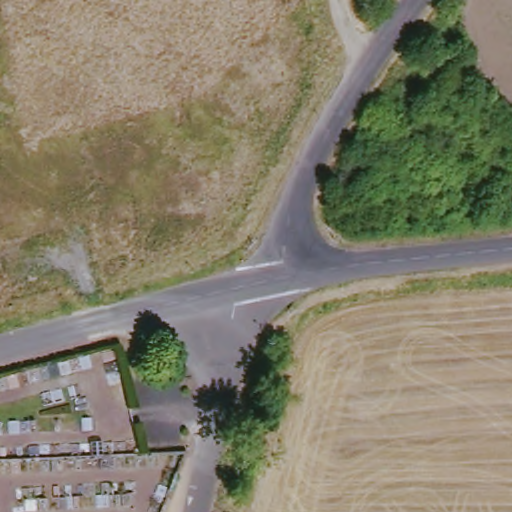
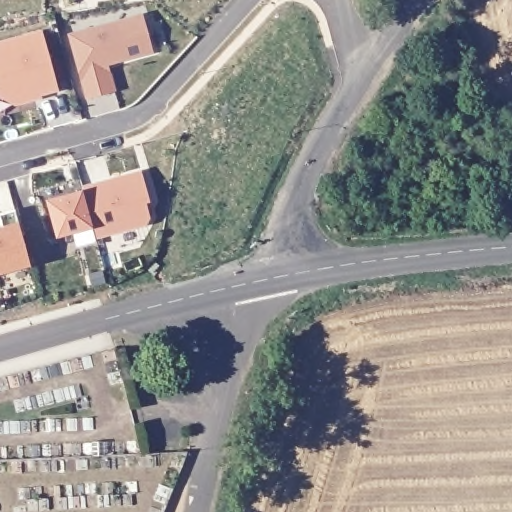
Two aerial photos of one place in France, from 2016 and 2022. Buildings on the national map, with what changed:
new [(108,64),(115,91),(85,100),(66,36),(143,14),(152,54),(108,64)]
new [(0,96),(0,42),(42,30),(57,91),(12,104),(0,96)]
new [(45,201),(82,191),(81,187),(140,172),(149,215),(145,225),(96,239),(93,227),(90,228),(55,238),(45,201)]
new [(0,227),(2,226),(0,221),(0,214),(13,211),(17,221),(27,267),(0,274),(0,227)]

